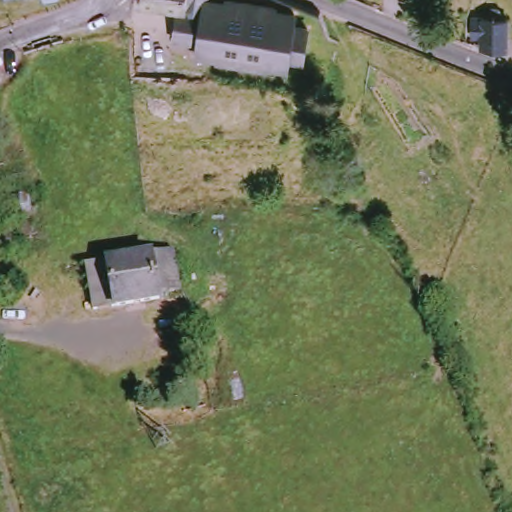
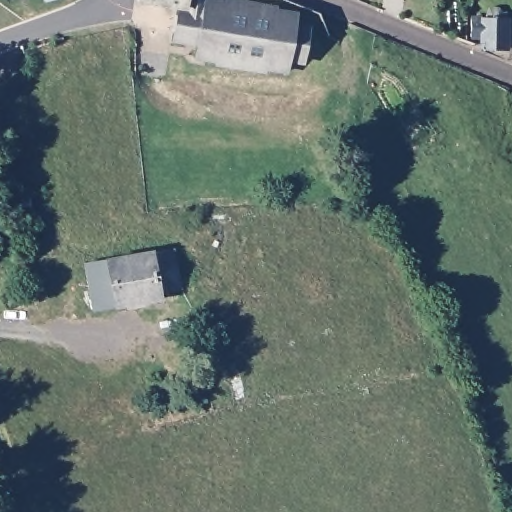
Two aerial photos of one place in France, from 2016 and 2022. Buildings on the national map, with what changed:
unchanged [(204,62),(205,49),(184,47),(187,17),(191,17),(192,13),(144,6),(144,0),(214,0),(214,6),(224,8),(215,64),(204,62)]
unchanged [(224,8),(232,9),(232,4),(279,11),(279,16),(300,19),(297,30),(312,32),(307,66),(293,65),(292,74),(270,72),(270,76),(222,69),(223,65),(215,64),(224,8)]
unchanged [(472,20),(482,20),(486,19),(486,14),(488,10),(492,8),(498,8),(501,11),(502,14),(502,18),(508,19),(509,50),(482,48),(482,38),(472,38),(472,20)]
unchanged [(20,196),(22,217),(20,218),(1,220),(1,218),(0,218),(0,201),(0,197),(20,196)]
unchanged [(185,289),(164,293),(165,299),(95,312),(86,265),(177,247),(185,289)]

